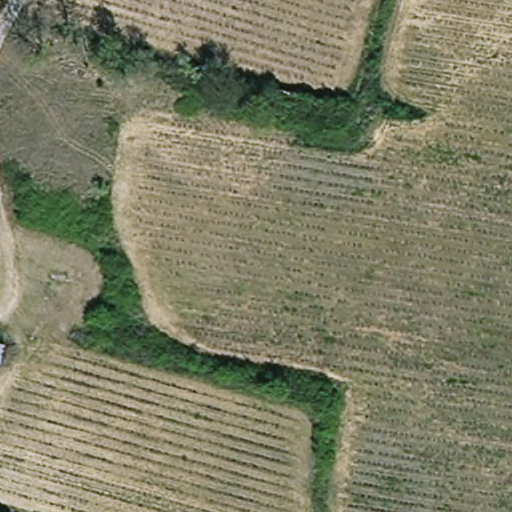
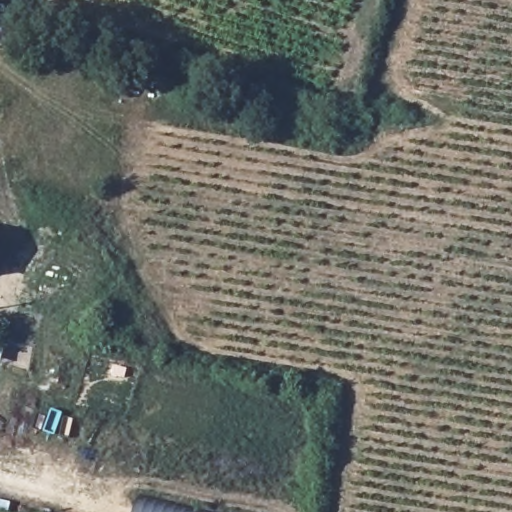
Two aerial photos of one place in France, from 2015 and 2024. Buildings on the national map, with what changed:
unchanged [(0,363),(0,341),(6,342),(0,363)]
new [(138,500),(188,512),(135,512),(138,500)]

